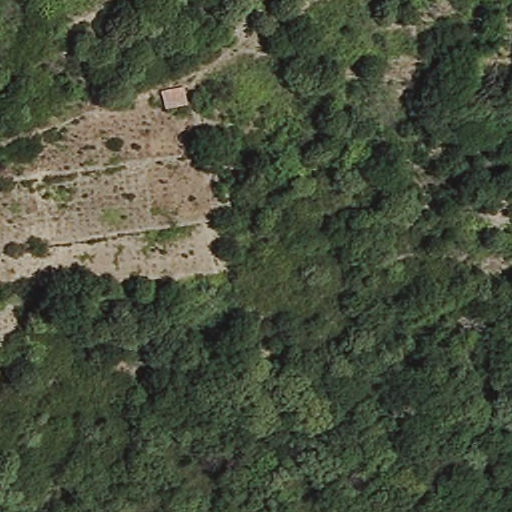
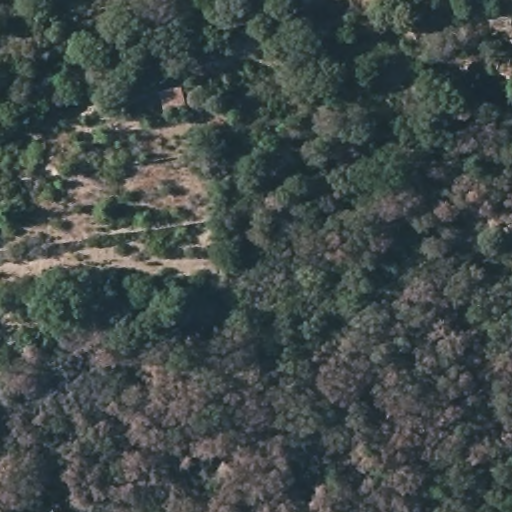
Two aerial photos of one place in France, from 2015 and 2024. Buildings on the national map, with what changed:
unchanged [(159,117),(152,98),(182,86),(187,107),(159,117)]

